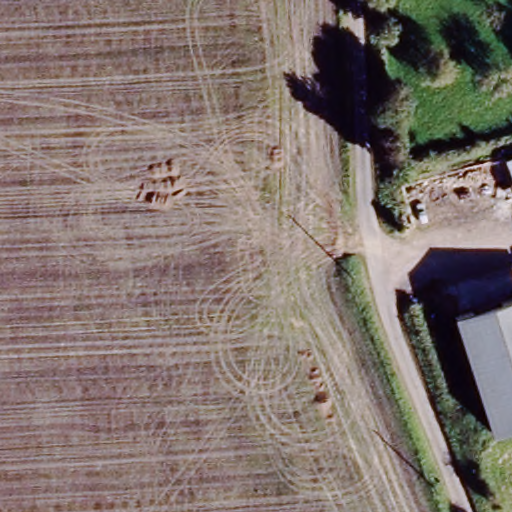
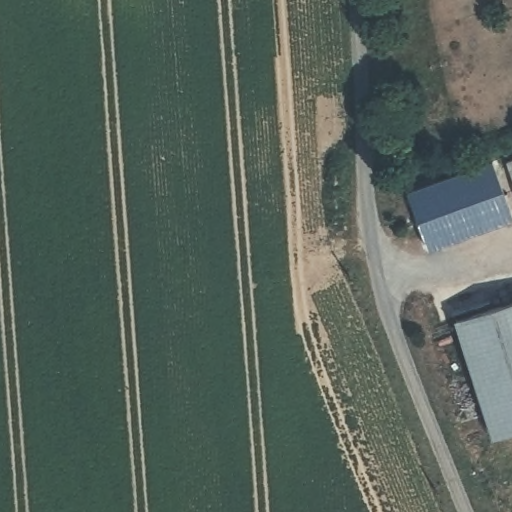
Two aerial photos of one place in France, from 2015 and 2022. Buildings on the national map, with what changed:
new [(493,155),(512,208),(512,217),(426,249),(404,189),(493,155)]
unchanged [(512,174),(507,162),(512,160),(512,174)]
unchanged [(512,433),(500,438),(458,338),(453,324),(512,301),(512,433)]

